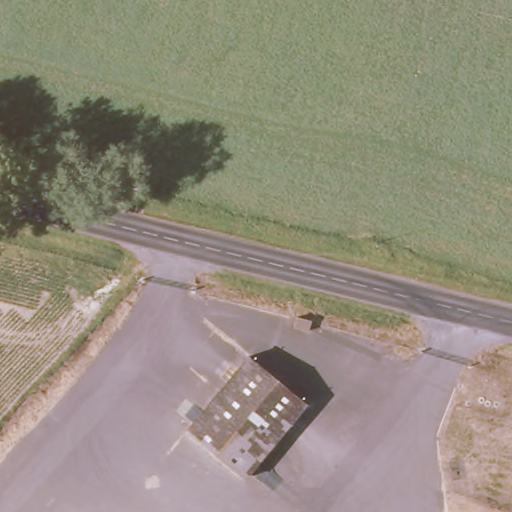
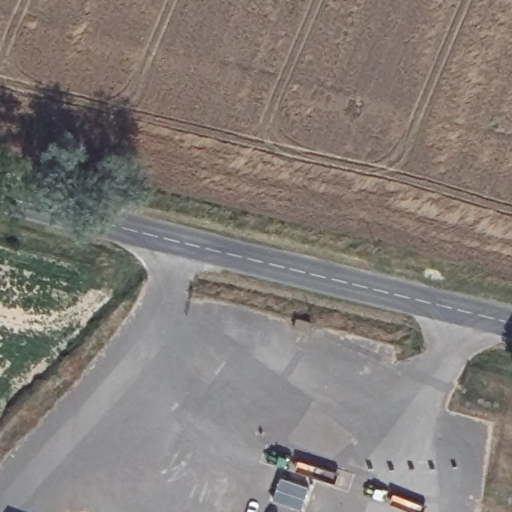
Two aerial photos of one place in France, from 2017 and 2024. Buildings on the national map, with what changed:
unchanged [(313,322),(310,334),(293,330),(297,317),(313,322)]
demolished [(185,430),(247,351),(307,404),(247,479),(185,430)]

